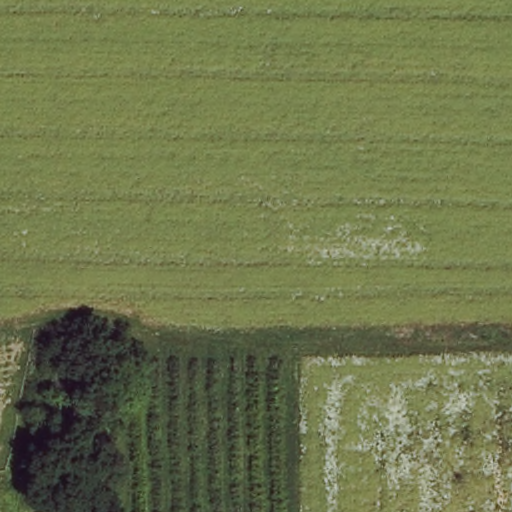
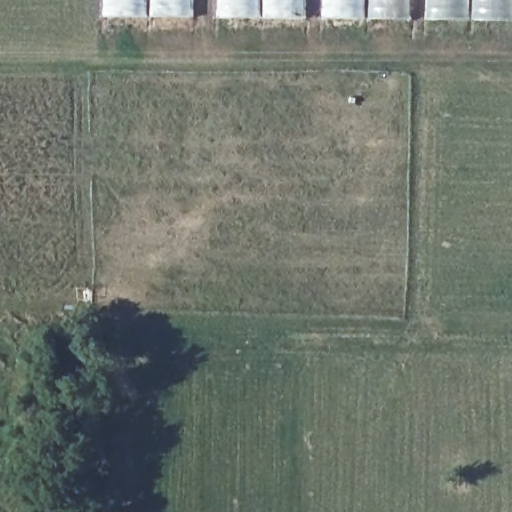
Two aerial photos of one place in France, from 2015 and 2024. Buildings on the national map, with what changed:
new [(106,15),(106,0),(512,0),(512,23),(106,15)]

